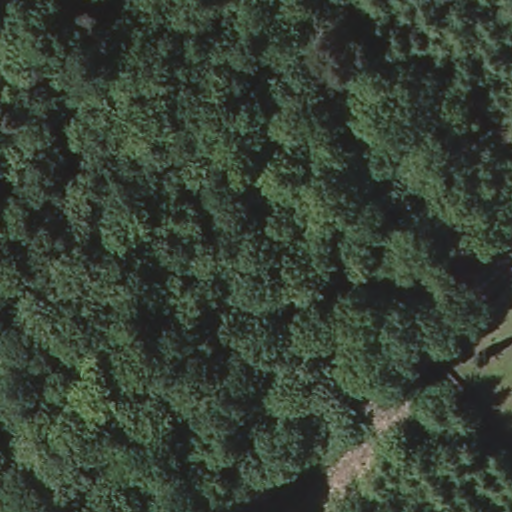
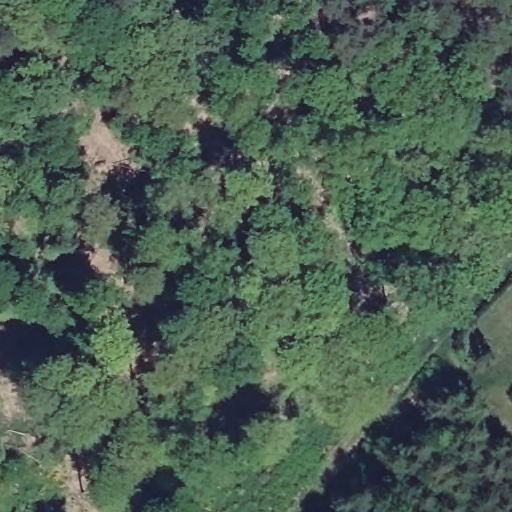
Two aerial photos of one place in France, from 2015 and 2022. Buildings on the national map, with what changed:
[]

